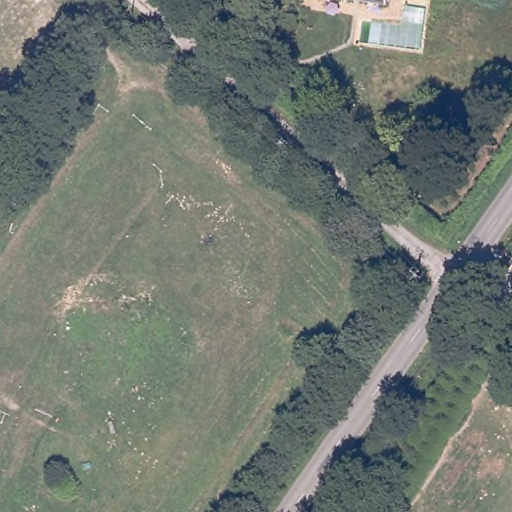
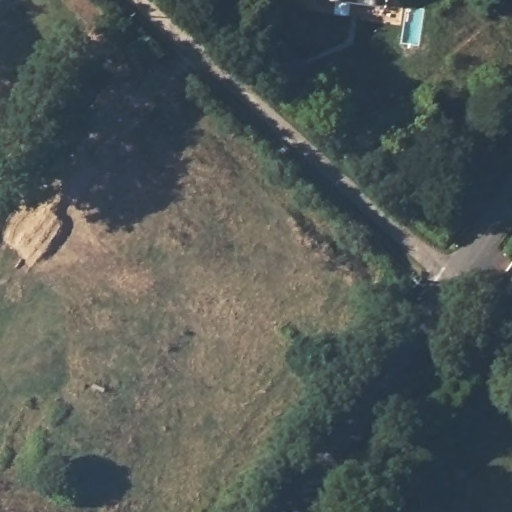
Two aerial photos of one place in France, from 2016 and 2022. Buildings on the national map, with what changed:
unchanged [(338,0),(382,0),(381,7),(338,0)]

